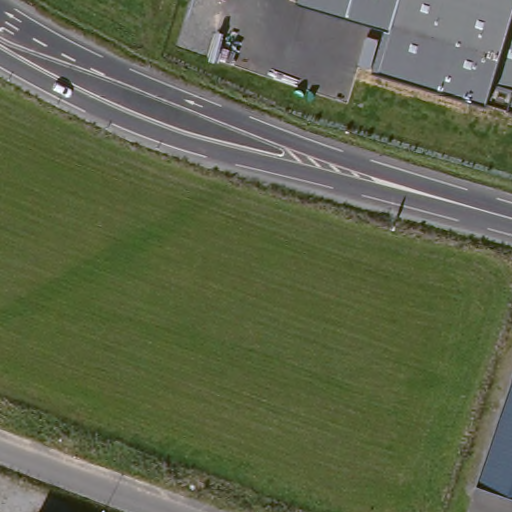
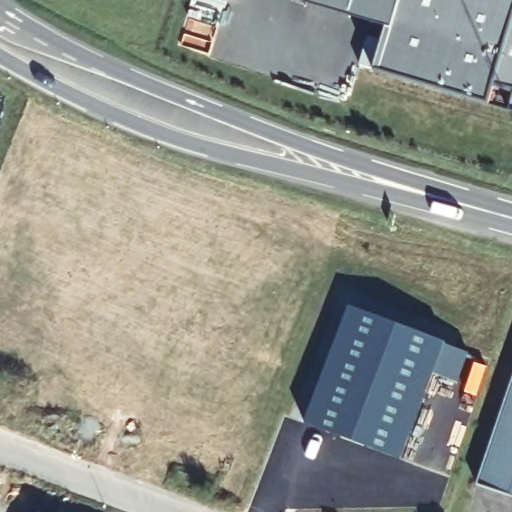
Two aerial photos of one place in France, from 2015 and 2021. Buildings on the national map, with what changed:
unchanged [(486,102),(374,70),(386,26),(300,1),(301,0),(512,0),(512,86),(493,80),(486,102)]
unchanged [(512,91),(512,108),(507,107),(512,91)]
new [(348,303),(444,341),(399,458),(303,421),(348,303)]
unchanged [(512,375),(512,494),(476,483),(512,375)]
unchanged [(50,512),(37,512),(39,507),(50,512)]

